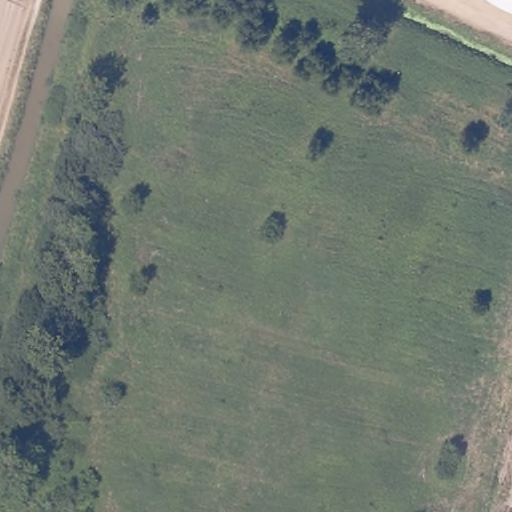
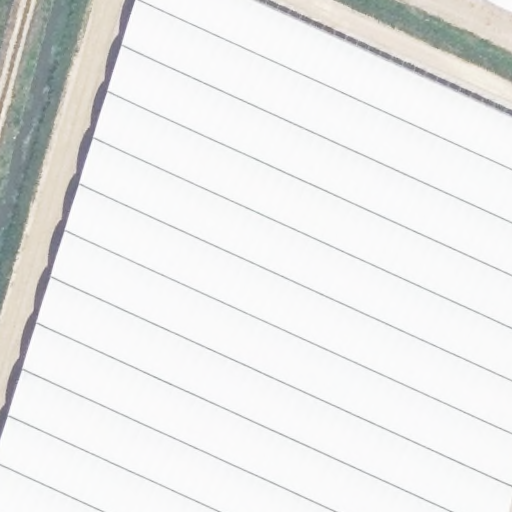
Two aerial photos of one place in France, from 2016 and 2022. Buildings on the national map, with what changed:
new [(134,0),(257,0),(512,117),(512,495),(507,512),(0,512),(0,437),(134,0)]
unchanged [(512,0),(512,7),(497,0),(512,0)]

